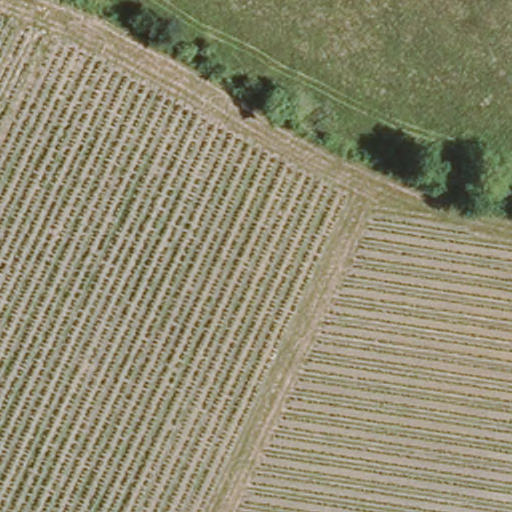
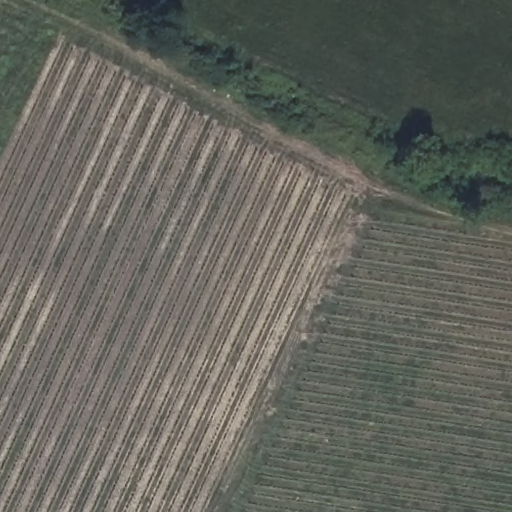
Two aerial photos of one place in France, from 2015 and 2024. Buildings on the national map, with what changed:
[]

